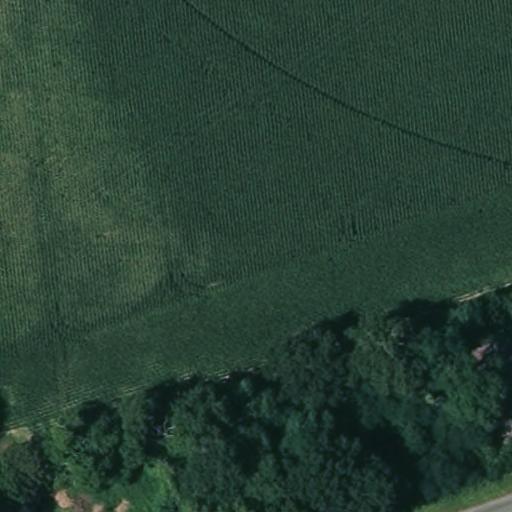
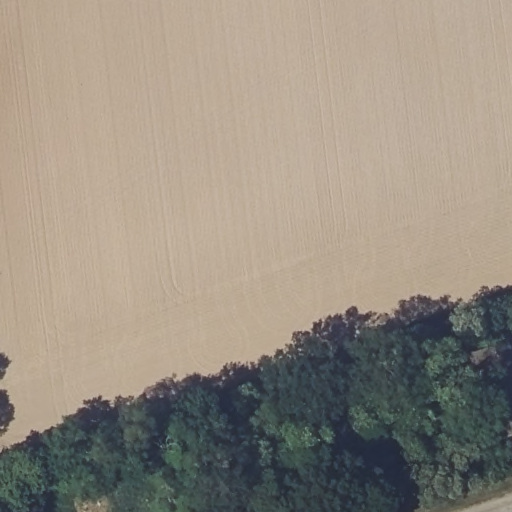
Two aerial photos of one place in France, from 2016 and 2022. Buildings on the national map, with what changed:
unchanged [(499,340),(512,380),(512,432),(500,435),(471,348),(499,340)]

